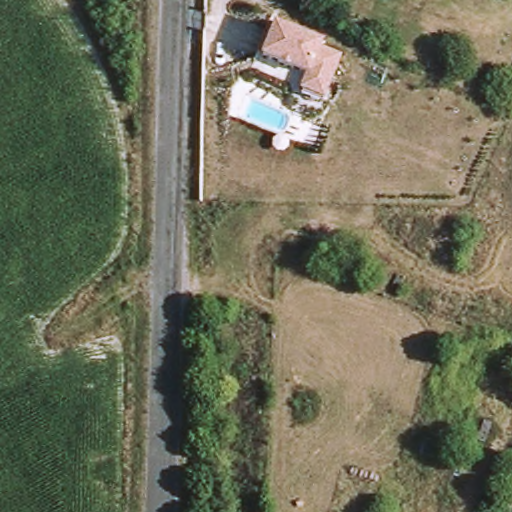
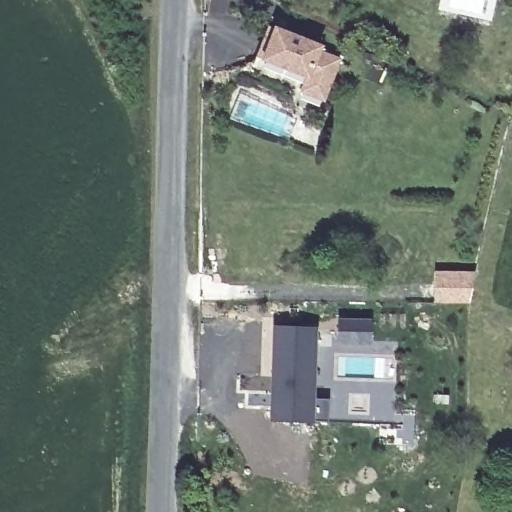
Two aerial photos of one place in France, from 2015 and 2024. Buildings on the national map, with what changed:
unchanged [(261,60),(274,26),(322,44),(321,50),(342,59),(326,102),(300,93),(307,78),(261,60)]
new [(434,303),(435,272),(475,271),(468,303),(434,303)]
new [(269,419),(272,324),(316,327),(314,400),(328,400),(326,423),(313,422),(269,419)]

